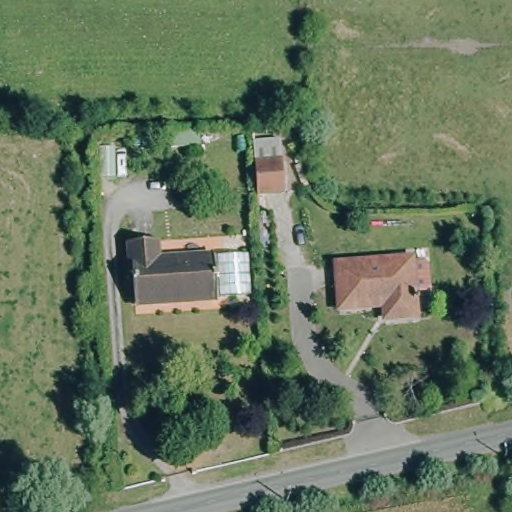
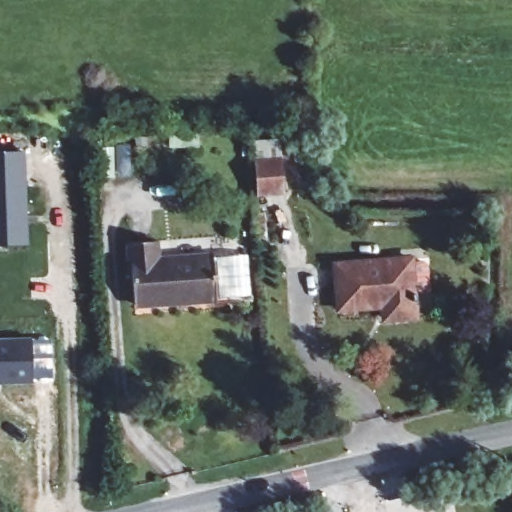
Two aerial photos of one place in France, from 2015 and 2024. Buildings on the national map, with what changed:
new [(24,153),(28,246),(0,247),(0,154),(24,153)]
unchanged [(280,162),(282,194),(253,195),(252,187),(252,163),(280,162)]
unchanged [(153,250),(155,271),(212,269),(213,305),(129,309),(128,252),(153,250)]
unchanged [(409,264),(413,315),(383,318),(382,308),(340,309),(337,266),(409,264)]
new [(33,340),(35,383),(0,384),(0,342),(33,340)]

